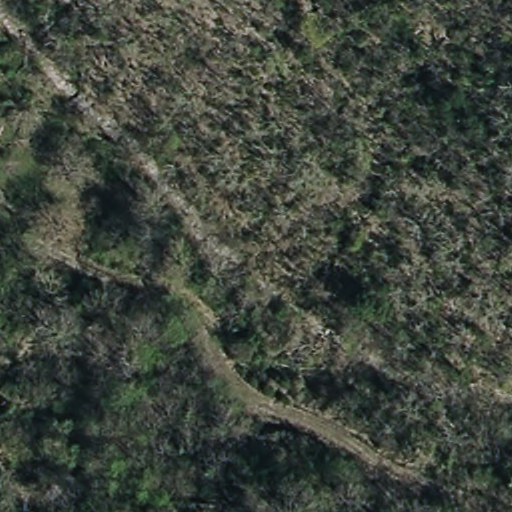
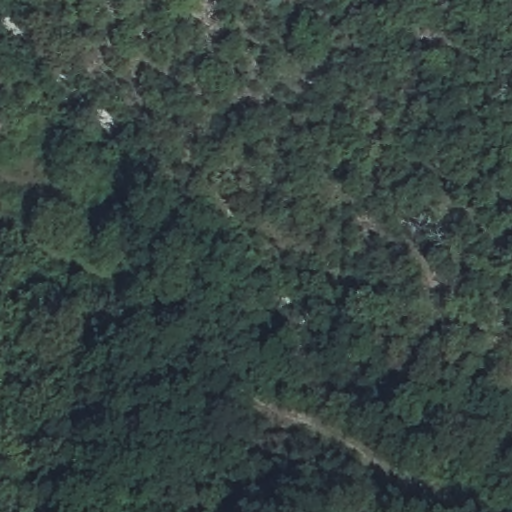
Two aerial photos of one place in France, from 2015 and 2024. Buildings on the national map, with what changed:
unchanged [(4,121),(0,130),(0,120),(4,121)]

